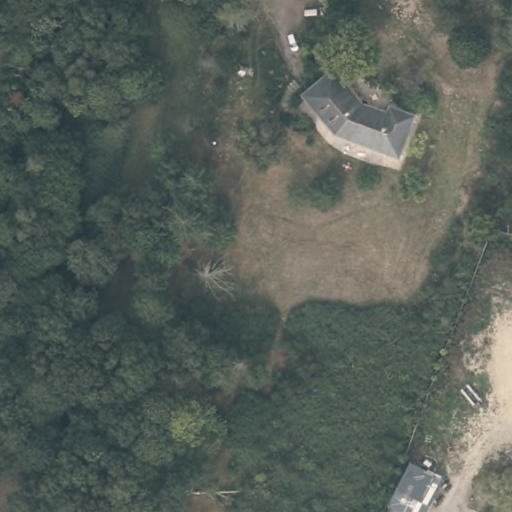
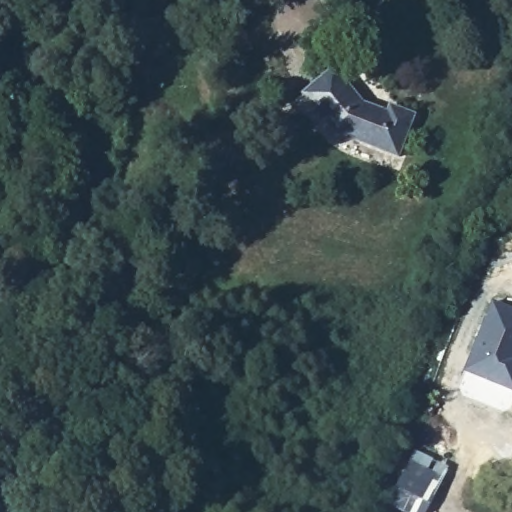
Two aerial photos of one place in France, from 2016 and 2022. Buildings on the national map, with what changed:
unchanged [(329,78),(362,113),(369,107),(388,115),(391,107),(416,116),(400,159),(336,139),(302,101),(329,78)]
new [(512,309),(512,391),(465,372),(494,302),(512,309)]
unchanged [(445,480),(429,512),(401,512),(391,506),(411,463),(445,480)]

